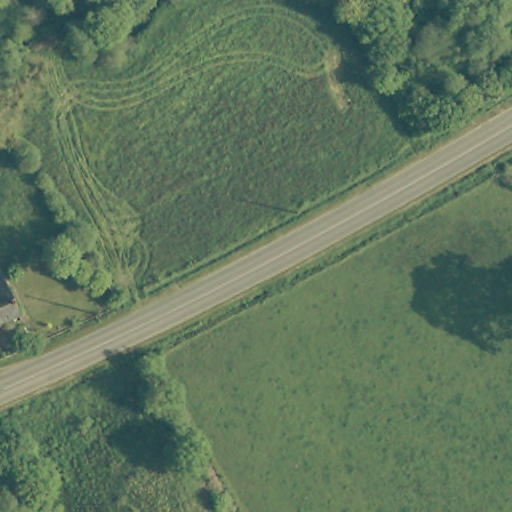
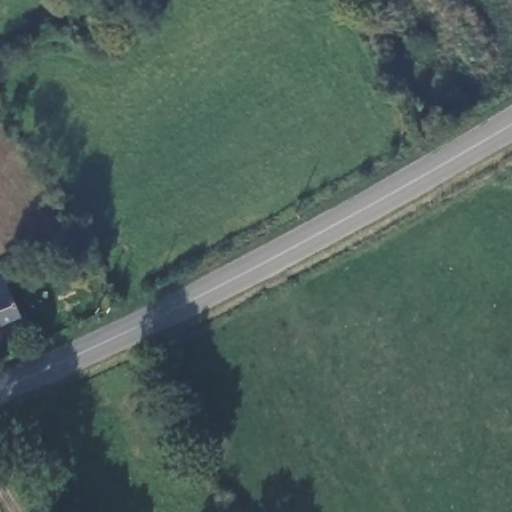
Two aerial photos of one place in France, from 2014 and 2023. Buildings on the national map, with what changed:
unchanged [(18,309),(0,317),(0,266),(1,270),(18,309)]

